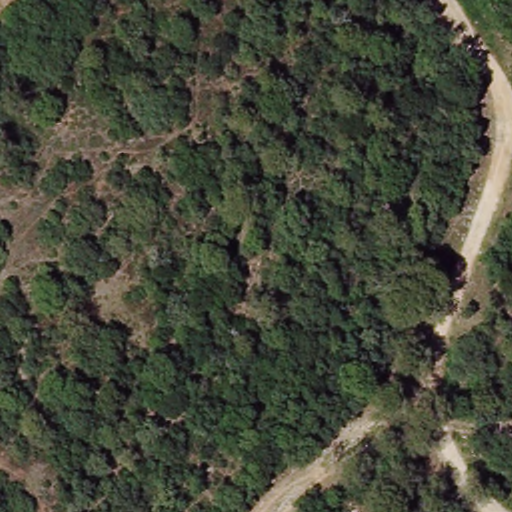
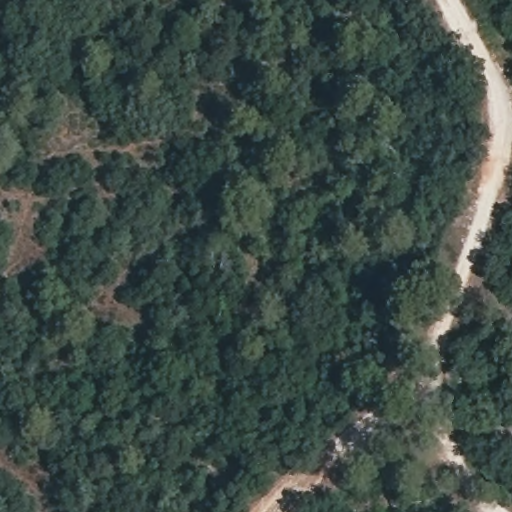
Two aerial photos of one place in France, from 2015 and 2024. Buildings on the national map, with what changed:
[]

